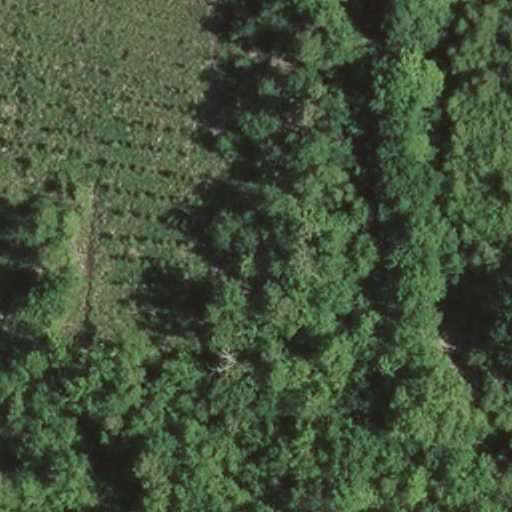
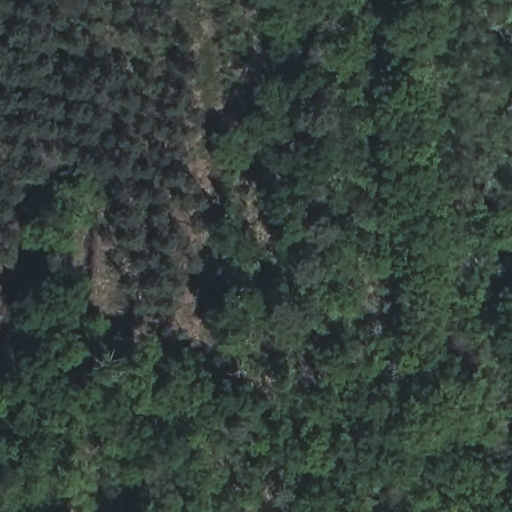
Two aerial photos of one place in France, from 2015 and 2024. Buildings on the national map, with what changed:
[]

